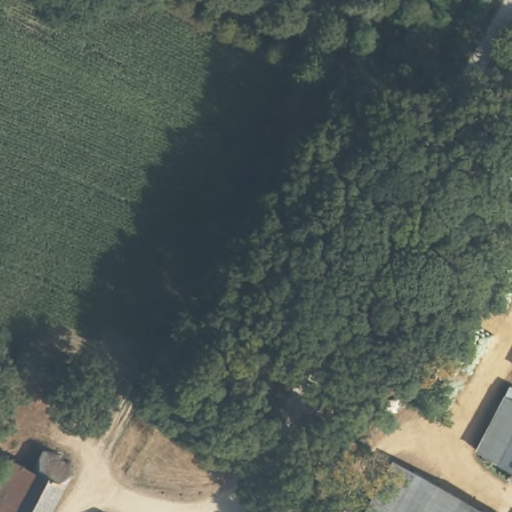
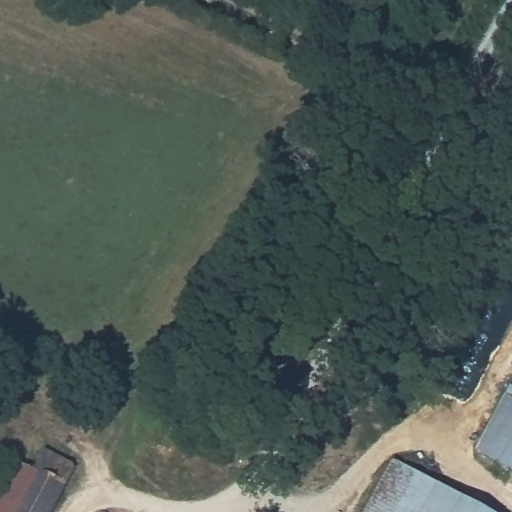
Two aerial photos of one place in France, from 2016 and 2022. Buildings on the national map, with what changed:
unchanged [(59,416),(74,386),(126,412),(110,440),(59,416)]
unchanged [(478,445),(505,391),(512,395),(512,463),(478,445)]
unchanged [(15,512),(35,472),(46,450),(78,467),(53,512),(15,512)]
unchanged [(425,474),(402,512),(368,512),(398,458),(425,474)]
unchanged [(35,472),(15,512),(0,512),(0,487),(14,461),(35,472)]
unchanged [(402,512),(425,474),(494,512),(402,512)]

